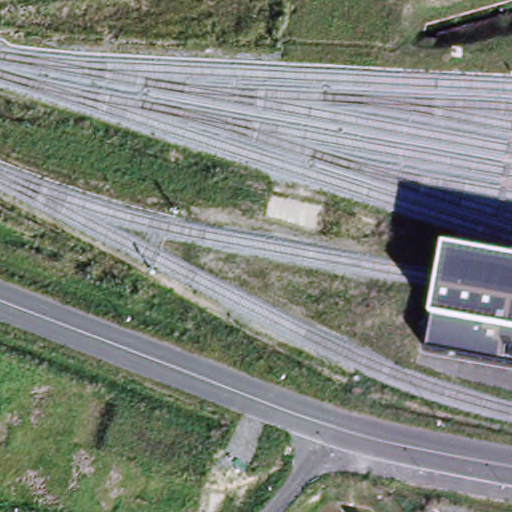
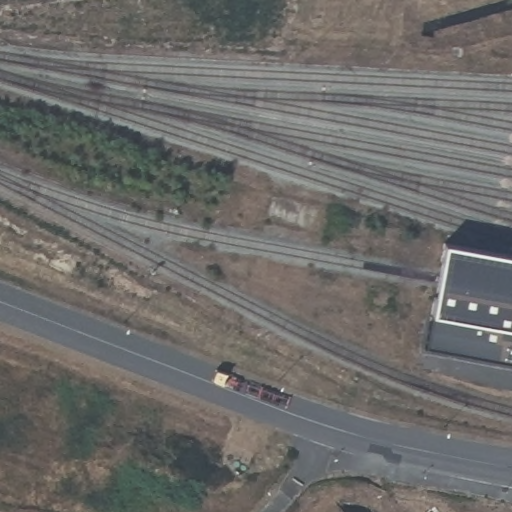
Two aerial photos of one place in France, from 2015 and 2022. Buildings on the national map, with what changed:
unchanged [(434,313),(445,244),(512,256),(512,360),(427,346),(434,313)]

